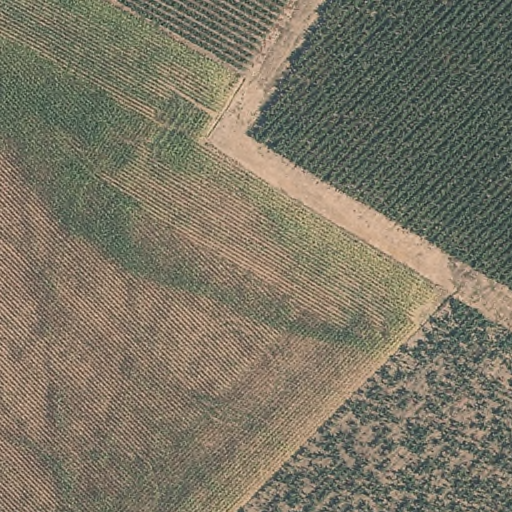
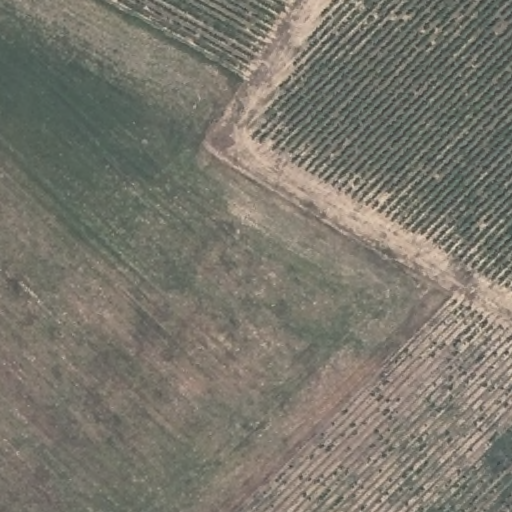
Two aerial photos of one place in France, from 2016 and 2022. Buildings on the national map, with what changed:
[]

